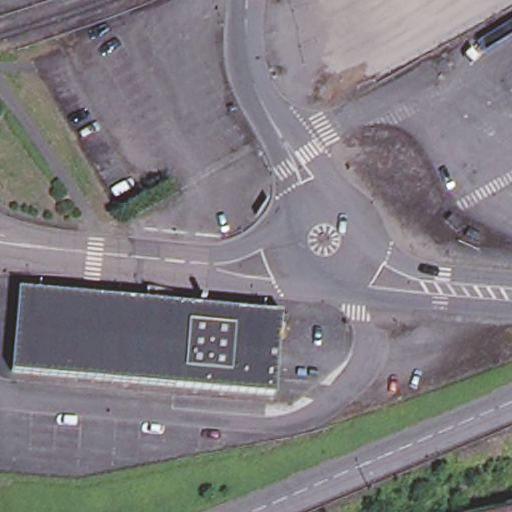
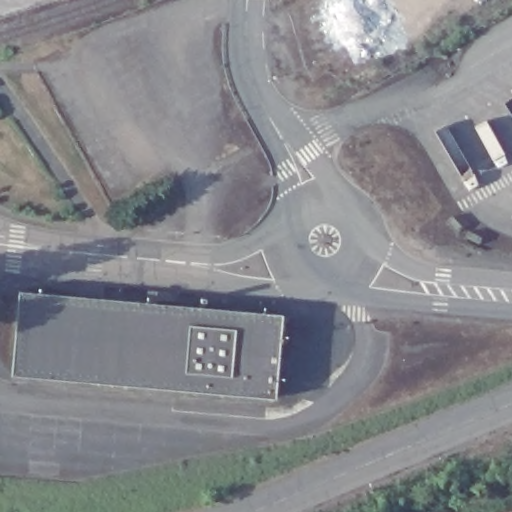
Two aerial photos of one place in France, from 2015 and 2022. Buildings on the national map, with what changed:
unchanged [(17,286),(277,309),(272,374),(270,392),(10,369),(17,286)]

